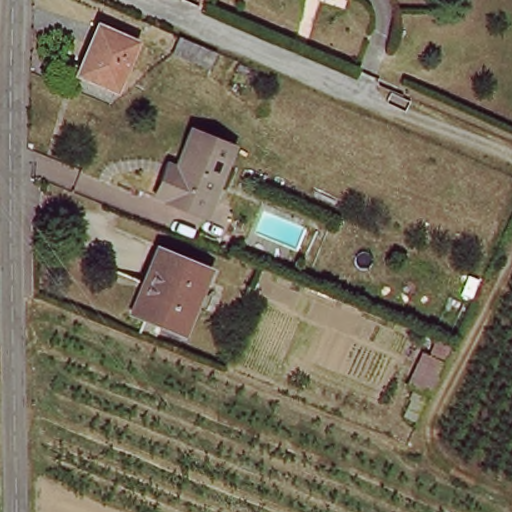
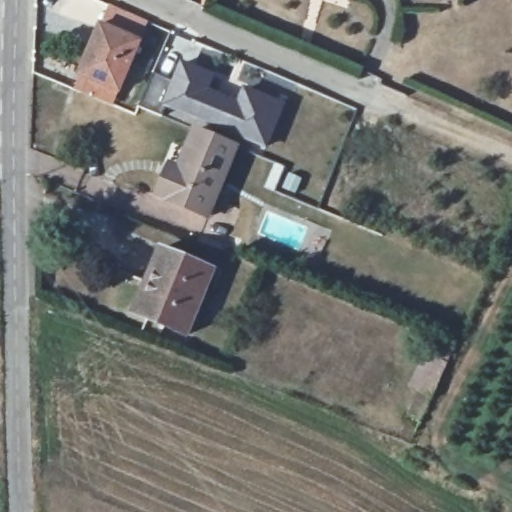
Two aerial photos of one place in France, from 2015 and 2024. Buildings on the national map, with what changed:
unchanged [(341,0),(340,1),(338,0),(341,0)]
unchanged [(102,26),(141,43),(122,91),(83,75),(102,26)]
demolished [(215,52),(208,69),(172,53),(180,36),(215,52)]
new [(287,105),(266,151),(165,109),(161,116),(140,107),(155,75),(171,83),(181,60),(216,77),(211,88),(237,100),(243,87),(287,105)]
unchanged [(175,163),(193,172),(205,148),(235,161),(210,222),(160,200),(175,163)]
unchanged [(145,285),(160,250),(214,273),(190,335),(150,319),(133,312),(145,285)]
unchanged [(407,387),(421,353),(446,363),(432,397),(407,387)]

